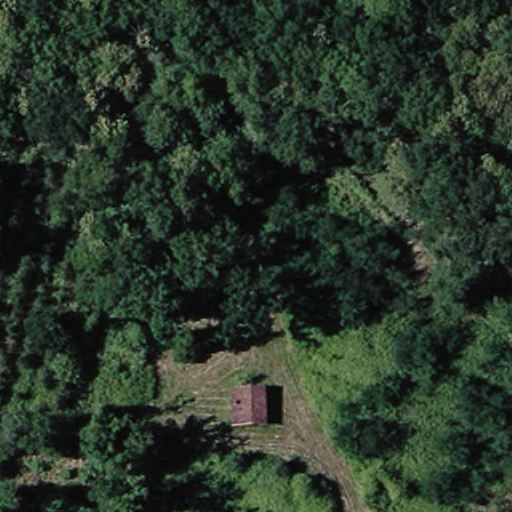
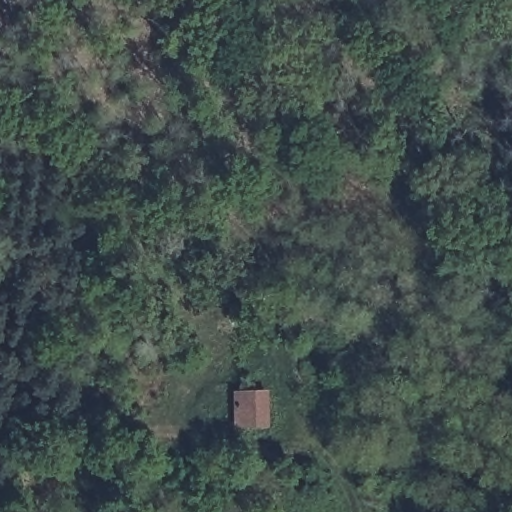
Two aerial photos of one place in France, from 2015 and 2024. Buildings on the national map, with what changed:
unchanged [(267,391),(269,427),(238,428),(236,392),(267,391)]

